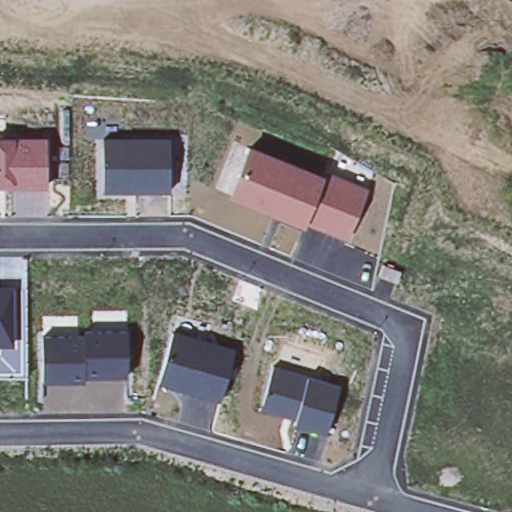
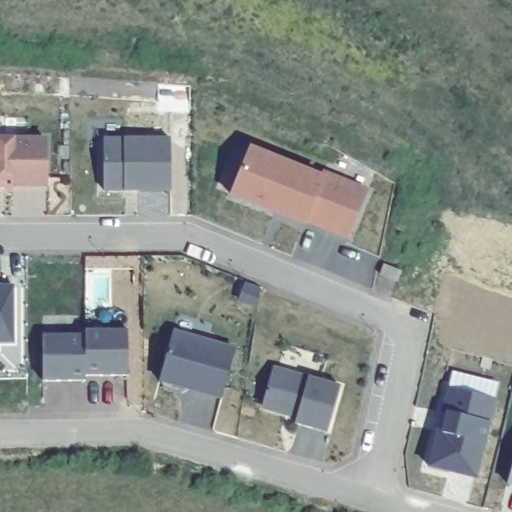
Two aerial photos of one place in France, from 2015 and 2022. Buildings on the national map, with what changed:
unchanged [(171,192),(105,194),(103,138),(171,137),(171,192)]
unchanged [(47,189),(0,190),(0,139),(47,139),(47,189)]
unchanged [(350,241),(308,222),(304,229),(229,198),(249,146),(324,175),(326,170),(369,188),(350,241)]
unchanged [(14,286),(14,345),(0,345),(0,286),(14,286)]
unchanged [(175,331),(235,348),(221,401),(160,382),(175,331)]
unchanged [(42,336),(84,336),(84,332),(125,332),(126,377),(84,377),(84,382),(43,382),(42,336)]
unchanged [(294,426),(298,416),(263,408),(273,367),(339,386),(326,435),(294,426)]
new [(496,400),(477,477),(428,466),(448,388),(496,400)]
new [(512,465),(512,488),(506,486),(512,465)]

